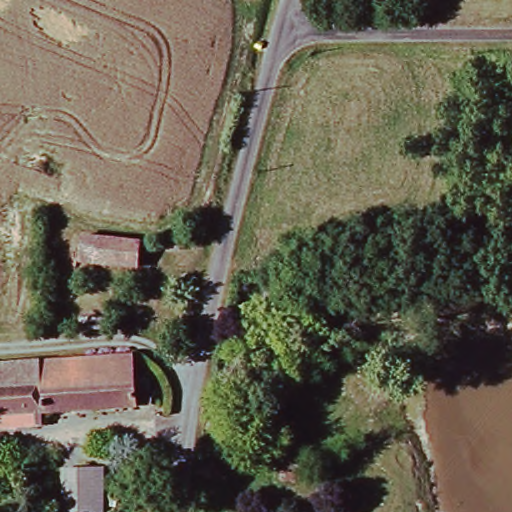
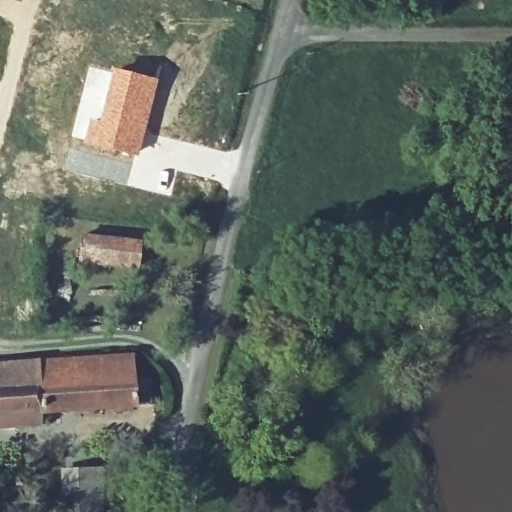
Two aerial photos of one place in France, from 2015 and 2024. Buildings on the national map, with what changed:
new [(87,65),(156,79),(136,158),(70,140),(87,65)]
unchanged [(83,232),(137,232),(136,273),(82,274),(83,232)]
unchanged [(132,411),(90,415),(85,364),(104,362),(127,360),(129,367),(132,411)]
unchanged [(90,415),(35,418),(30,368),(85,364),(90,415)]
unchanged [(35,418),(0,422),(0,371),(30,368),(35,418)]
unchanged [(60,470),(104,468),(102,512),(57,512),(60,470)]

